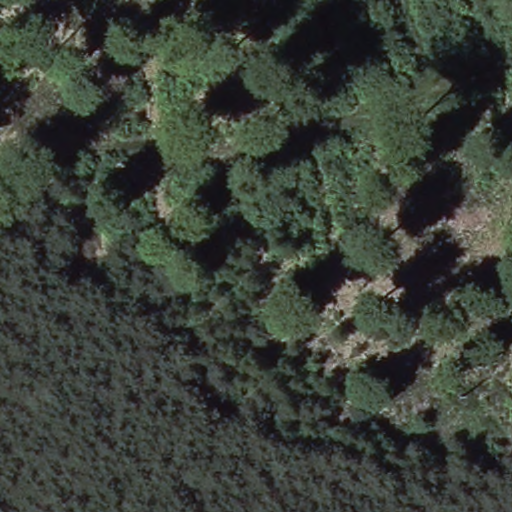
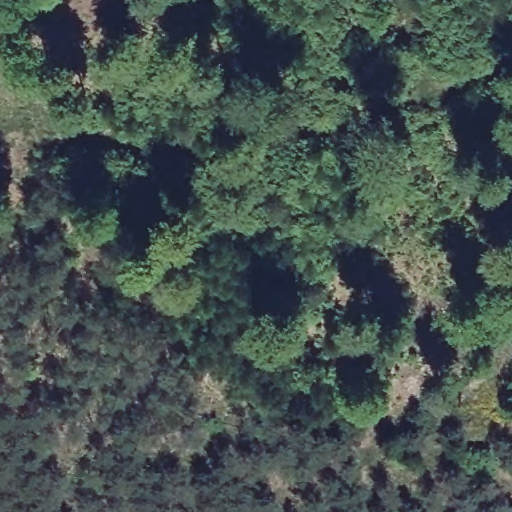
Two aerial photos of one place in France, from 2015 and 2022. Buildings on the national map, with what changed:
[]

